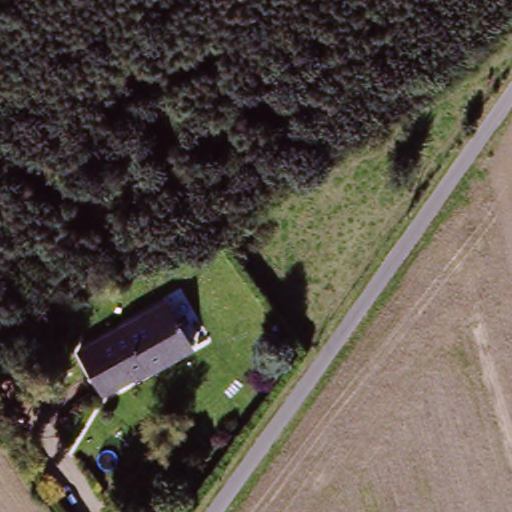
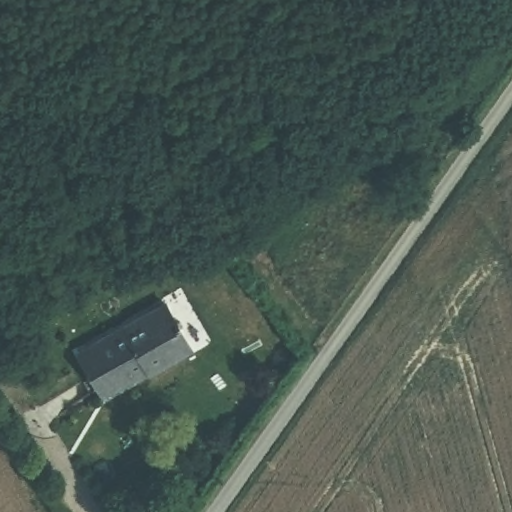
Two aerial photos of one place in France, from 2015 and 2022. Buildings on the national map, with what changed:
unchanged [(134,367),(86,379),(75,335),(172,310),(185,361),(136,373),(134,367)]

